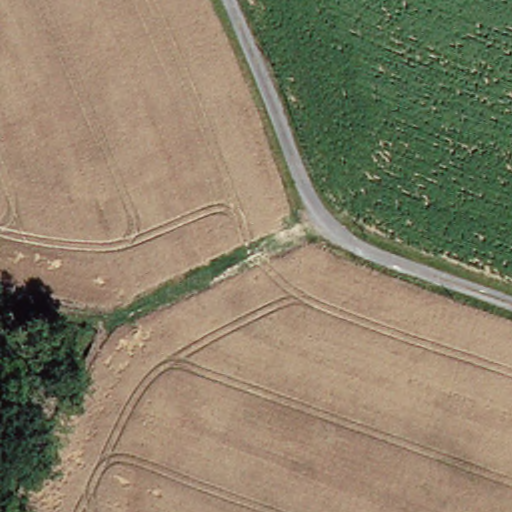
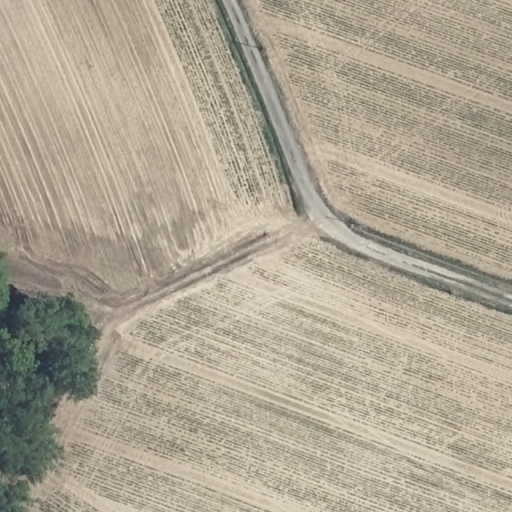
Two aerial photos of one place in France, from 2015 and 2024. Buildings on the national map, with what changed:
[]

